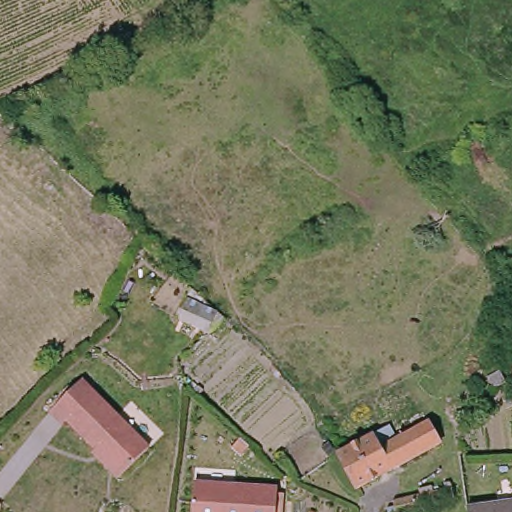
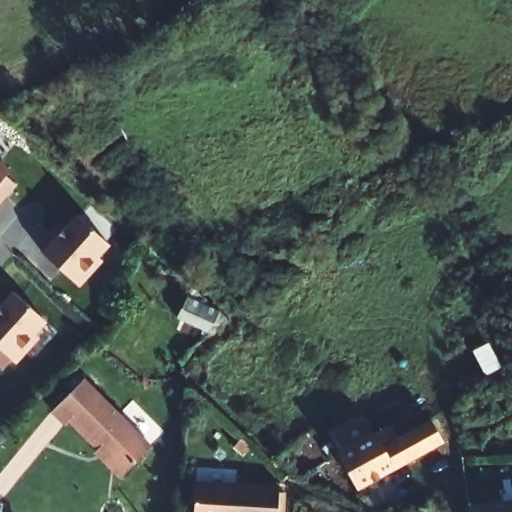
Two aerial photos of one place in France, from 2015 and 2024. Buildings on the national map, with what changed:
new [(0,206),(0,175),(14,189),(0,206)]
new [(103,249),(72,287),(37,256),(71,219),(103,249)]
unchanged [(219,317),(203,333),(171,317),(186,286),(221,317),(219,317)]
new [(41,325),(1,369),(0,368),(0,304),(8,296),(41,325)]
unchanged [(83,380),(153,446),(125,475),(69,422),(65,426),(52,412),(83,380)]
unchanged [(339,453),(392,425),(399,437),(429,420),(441,440),(359,487),(339,453)]
unchanged [(276,485),(275,512),(191,512),(193,480),(276,485)]
unchanged [(438,487),(439,499),(402,506),(401,494),(438,487)]
unchanged [(512,499),(512,512),(470,512),(469,505),(512,499)]

